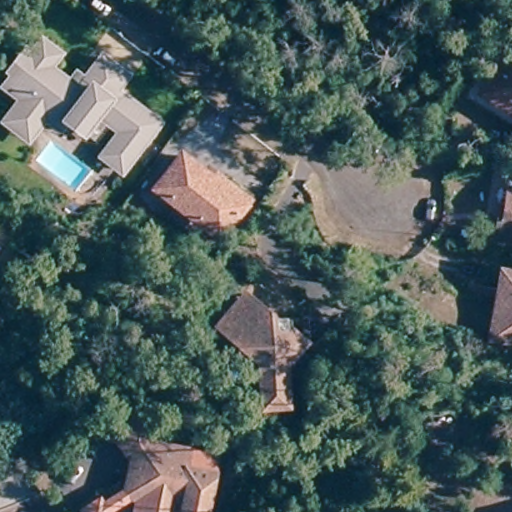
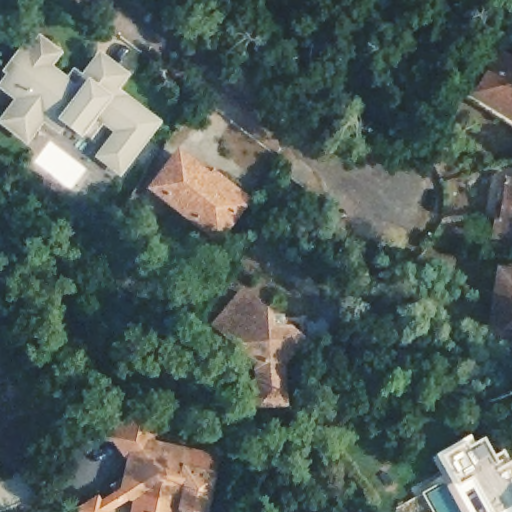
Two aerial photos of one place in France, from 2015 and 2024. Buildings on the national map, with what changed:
unchanged [(0,125),(0,109),(1,107),(9,97),(0,91),(0,72),(0,64),(12,47),(19,52),(29,38),(45,51),(33,67),(54,83),(57,79),(67,86),(91,55),(94,57),(115,73),(101,91),(113,99),(115,97),(146,122),(110,169),(91,155),(110,130),(85,111),(70,131),(54,118),(47,126),(44,123),(31,114),(24,125),(15,136),(0,125)]
unchanged [(512,65),(512,114),(480,95),(501,58),(512,65)]
unchanged [(211,183),(215,179),(245,202),(241,207),(241,208),(218,238),(155,190),(179,158),(211,183)]
unchanged [(505,211),(509,183),(512,183),(512,241),(495,238),(500,210),(505,211)]
unchanged [(500,273),(512,275),(512,345),(490,342),(500,273)]
unchanged [(345,317),(313,345),(288,313),(318,283),(345,317)]
unchanged [(243,293),(268,315),(268,330),(288,329),(300,339),(280,361),(283,400),(260,403),(258,358),(217,323),(243,293)]
unchanged [(134,497),(131,496),(110,510),(111,512),(89,512),(86,508),(101,498),(103,501),(134,479),(137,466),(114,433),(136,417),(151,438),(155,443),(195,452),(190,469),(220,475),(211,512),(193,512),(189,505),(184,504),(183,507),(182,512),(164,512),(140,507),(142,498),(134,497)]
new [(472,437),(476,445),(486,439),(493,454),(504,450),(512,462),(512,512),(468,512),(437,457),(472,437)]

